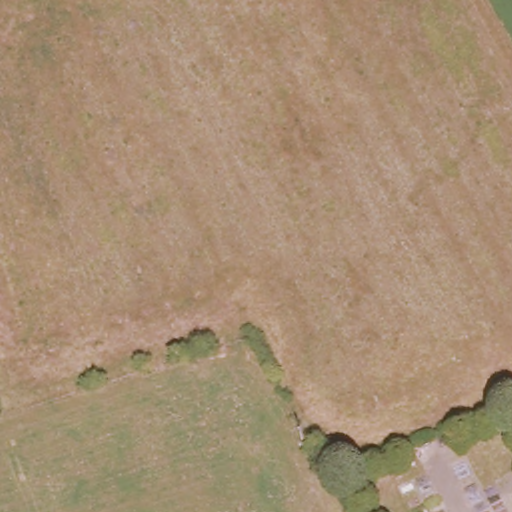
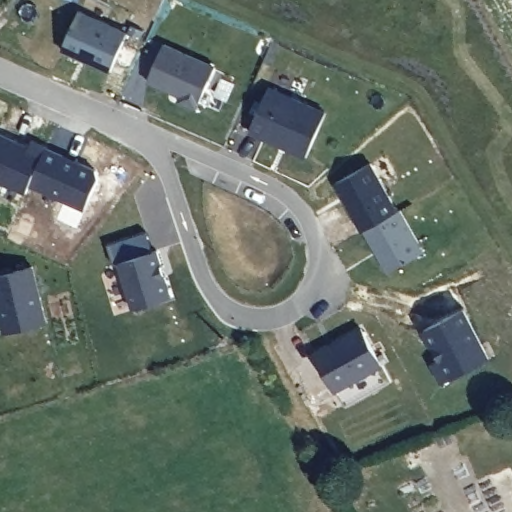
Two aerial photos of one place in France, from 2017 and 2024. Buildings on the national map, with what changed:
new [(63,52),(80,11),(127,32),(110,72),(63,52)]
new [(149,84),(165,45),(215,66),(197,105),(149,84)]
new [(250,134),(270,87),(326,112),(305,159),(250,134)]
new [(25,193),(0,182),(0,133),(30,145),(33,138),(49,145),(47,149),(97,169),(99,177),(85,209),(29,185),(25,193)]
new [(364,230),(362,231),(337,184),(371,164),(399,211),(401,210),(424,251),(389,272),(364,230)]
new [(112,246),(143,236),(149,254),(156,251),(170,297),(132,310),(112,246)]
new [(0,275),(34,265),(49,321),(5,332),(0,315),(0,275)]
new [(465,309),(490,357),(442,383),(431,363),(439,359),(423,331),(465,309)]
new [(337,393),(315,353),(361,328),(383,367),(337,393)]

